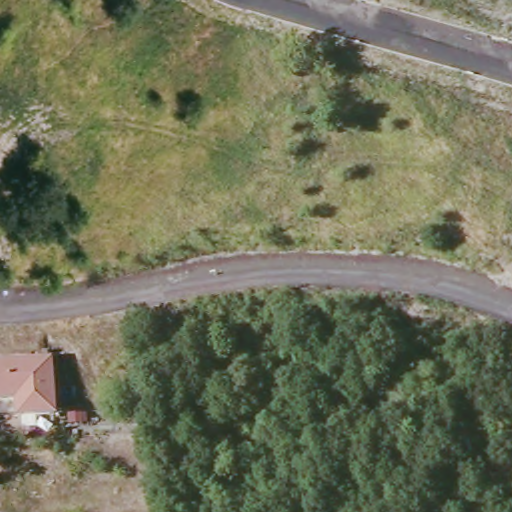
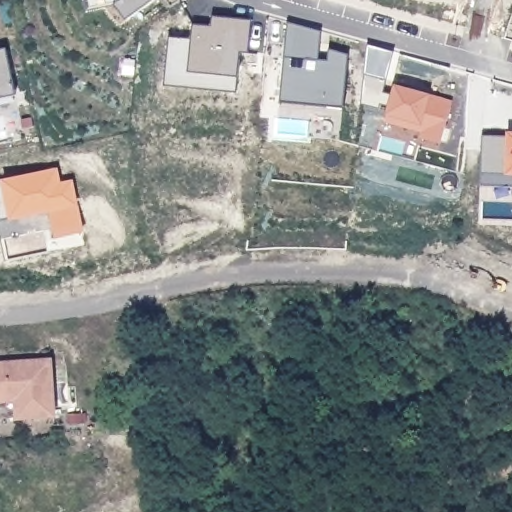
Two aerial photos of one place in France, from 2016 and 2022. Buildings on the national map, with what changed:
new [(89,0),(157,0),(128,21),(116,5),(92,11),(89,0)]
new [(166,71),(169,37),(192,39),(193,25),(212,26),(213,17),(252,20),(249,55),(241,54),(238,87),(236,94),(165,87),(166,71)]
new [(288,24),(321,34),(318,62),(331,62),(331,51),(348,57),(343,109),(281,102),(288,24)]
new [(13,96),(0,99),(0,50),(3,49),(13,96)]
new [(428,147),(419,139),(421,132),(384,121),(394,85),(430,95),(452,100),(440,145),(428,147)]
new [(481,187),(482,136),(504,137),(504,132),(512,132),(512,188),(481,187)]
unchanged [(10,396),(0,397),(0,361),(43,357),(48,410),(12,413),(10,396)]

